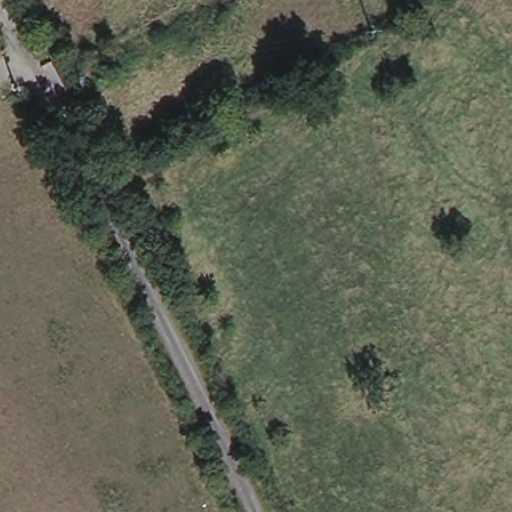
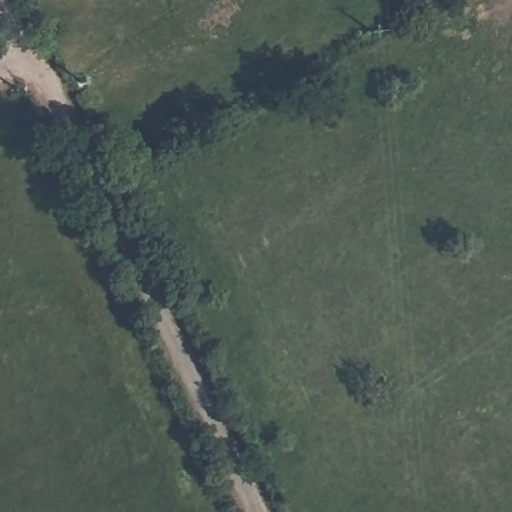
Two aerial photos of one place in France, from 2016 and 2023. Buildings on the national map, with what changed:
[]

